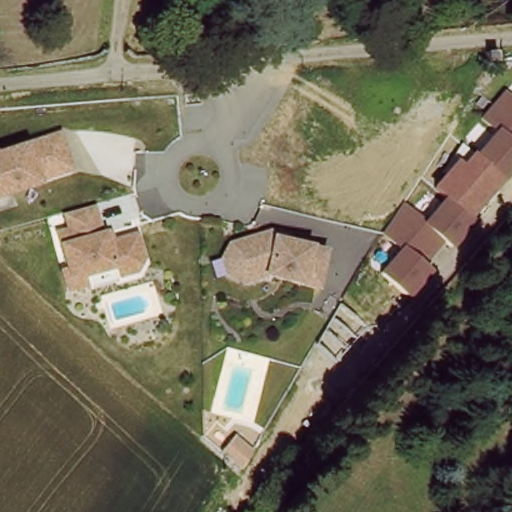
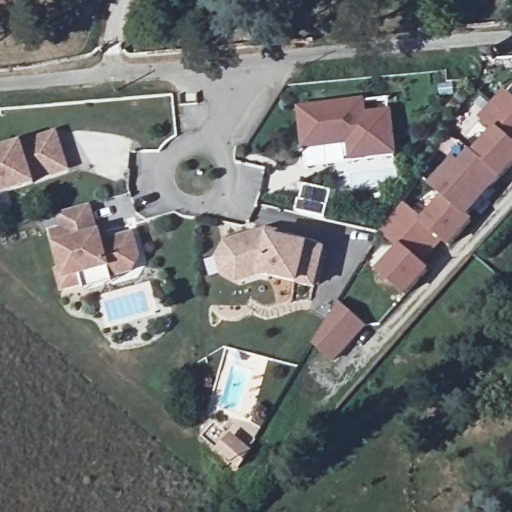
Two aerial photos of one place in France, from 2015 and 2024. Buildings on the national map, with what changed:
unchanged [(504,94),(512,101),(512,169),(509,172),(502,180),(475,157),(495,133),(481,120),(504,94)]
new [(365,99),(367,114),(392,111),(398,159),(350,165),(348,146),(302,153),(297,108),(365,99)]
unchanged [(0,149),(54,131),(65,169),(0,193),(0,149)]
unchanged [(431,188),(455,159),(460,164),(472,151),(475,157),(502,180),(467,220),(445,200),(431,188)]
unchanged [(400,251),(382,234),(405,209),(423,225),(445,200),(472,224),(450,249),(442,243),(420,268),(428,274),(407,299),(380,275),(400,251)]
unchanged [(62,231),(60,216),(93,208),(98,233),(107,230),(112,239),(133,234),(139,262),(131,276),(117,279),(114,268),(75,274),(79,296),(62,300),(48,237),(62,231)]
unchanged [(316,290),(260,279),(237,285),(220,276),(215,254),(223,243),(257,234),(325,249),(316,290)]
new [(341,303),(370,329),(335,367),(313,347),(341,303)]

